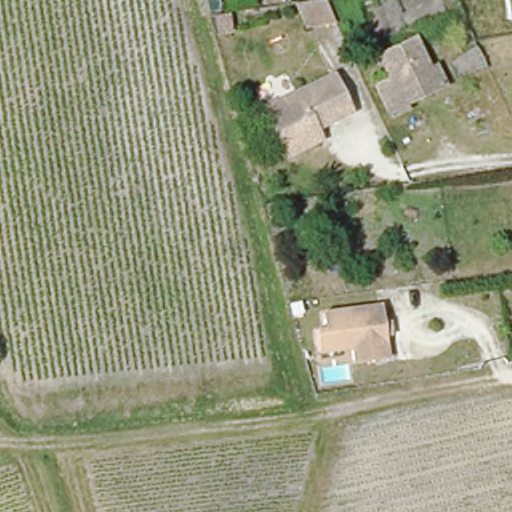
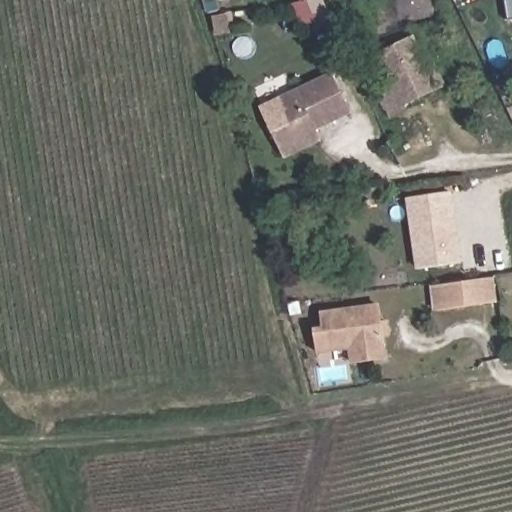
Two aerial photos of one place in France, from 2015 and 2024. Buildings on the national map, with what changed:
unchanged [(508,20),(505,0),(512,0),(512,19),(508,20)]
unchanged [(329,6),(340,29),(313,34),(307,10),(329,6)]
unchanged [(445,86),(438,90),(406,106),(407,109),(389,117),(374,89),(391,81),(380,55),(414,39),(430,72),(437,69),(445,86)]
unchanged [(288,156),(285,150),(267,110),(335,80),(351,116),(319,131),(320,135),(322,140),(288,156)]
new [(453,192),(462,263),(417,270),(407,200),(453,192)]
new [(499,303),(433,311),(431,288),(496,280),(499,303)]
unchanged [(387,307),(388,325),(394,325),(396,337),(390,337),(392,361),(357,365),(357,360),(356,349),(355,349),(318,352),(316,329),(325,328),(324,313),(348,310),(387,307)]

